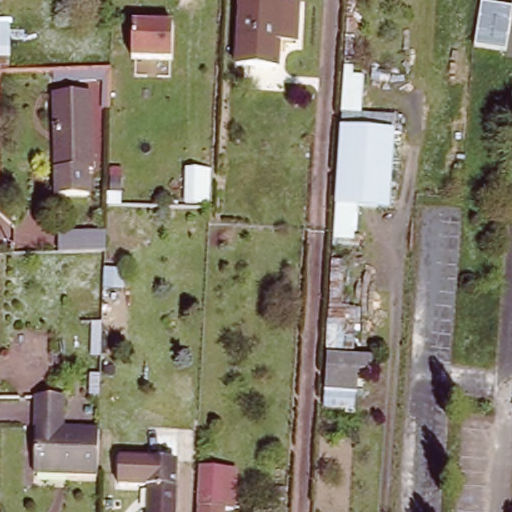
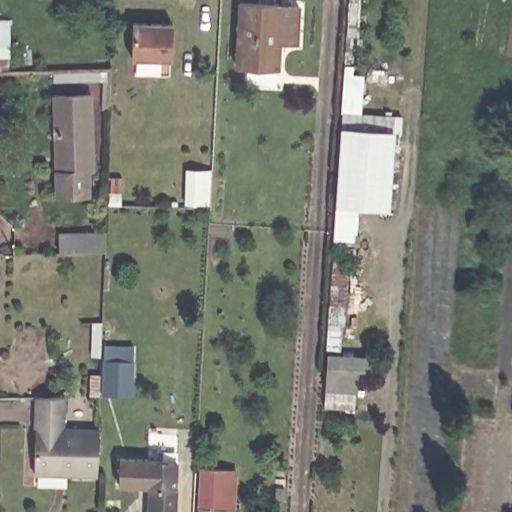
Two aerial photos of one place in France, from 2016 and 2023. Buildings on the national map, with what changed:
demolished [(510,4),(511,0),(512,0),(512,18),(506,50),(475,45),(482,1),(510,4)]
unchanged [(235,67),(240,4),(280,6),(298,8),(295,46),(282,45),(280,70),(235,67)]
unchanged [(172,23),(172,60),(132,60),(132,21),(172,23)]
unchanged [(365,64),(363,113),(394,117),(392,211),(362,210),(360,245),(334,242),(343,62),(365,64)]
unchanged [(57,96),(92,95),(94,169),(89,169),(89,194),(59,195),(59,169),(57,130),(57,96)]
new [(192,170),(209,171),(207,204),(190,204),(192,170)]
unchanged [(106,230),(105,250),(58,251),(57,231),(106,230)]
unchanged [(372,357),(371,380),(356,380),(355,410),(325,408),(325,355),(372,357)]
new [(100,394),(102,359),(135,360),(134,396),(100,394)]
unchanged [(67,426),(100,428),(99,475),(39,475),(39,397),(68,397),(67,426)]
unchanged [(178,512),(154,512),(155,489),(117,485),(119,453),(180,460),(178,512)]
unchanged [(205,467),(230,470),(230,491),(237,492),(235,510),(229,509),(229,512),(202,512),(204,490),(205,467)]

